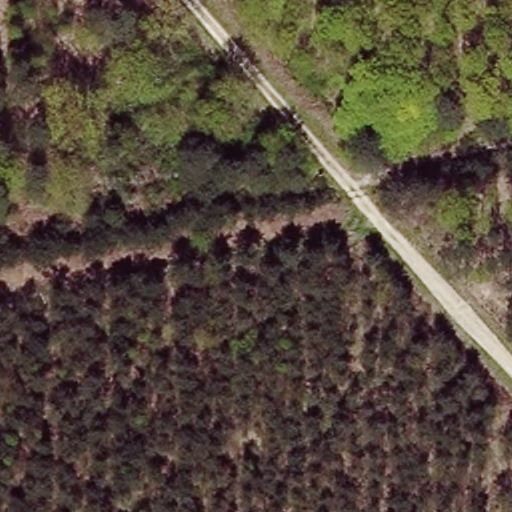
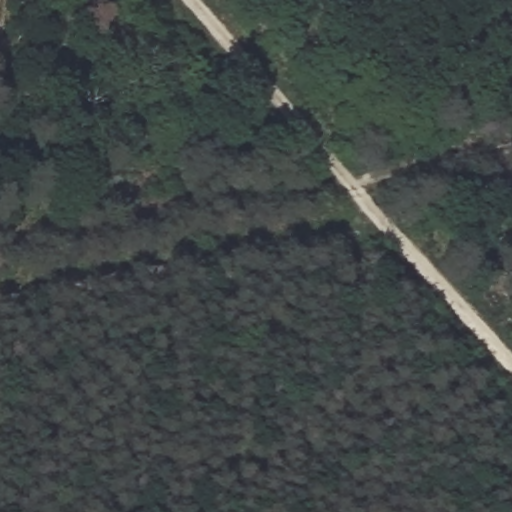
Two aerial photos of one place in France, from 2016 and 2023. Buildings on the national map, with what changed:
unchanged [(221,106),(239,103),(245,137),(227,141),(221,106)]

